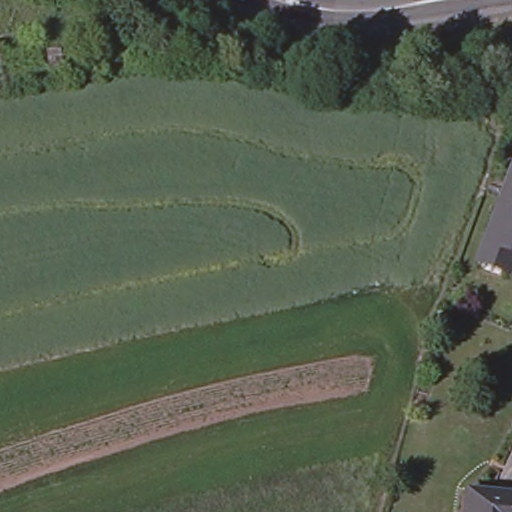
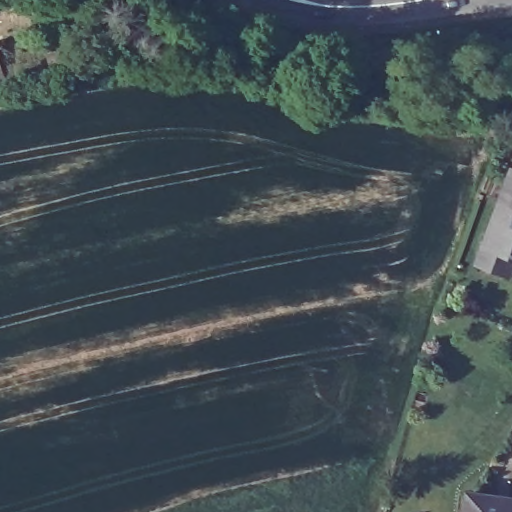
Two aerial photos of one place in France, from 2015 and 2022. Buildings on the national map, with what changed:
unchanged [(470,262),(507,159),(512,160),(512,272),(508,281),(470,262)]
unchanged [(476,498),(512,502),(512,512),(464,512),(465,496),(476,498)]

